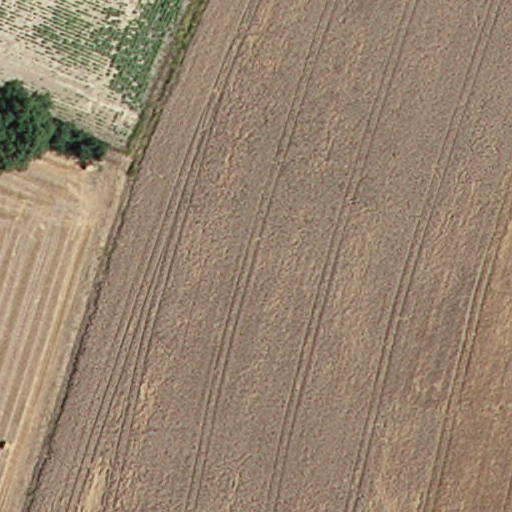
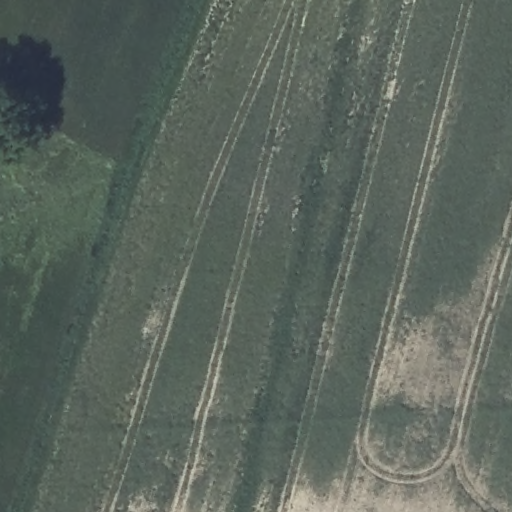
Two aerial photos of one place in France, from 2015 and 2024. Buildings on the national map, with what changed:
unchanged [(35,114),(51,121),(46,132),(30,124),(35,114)]

